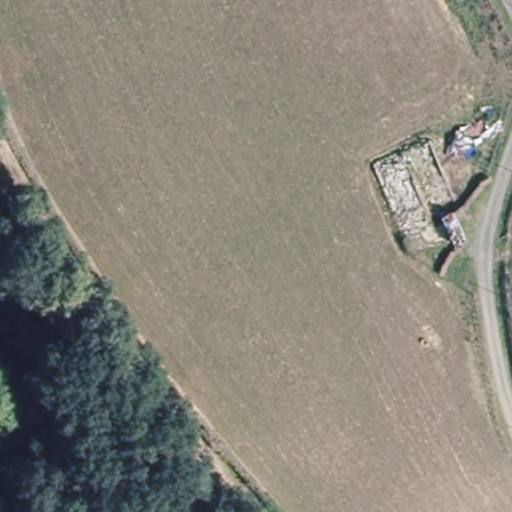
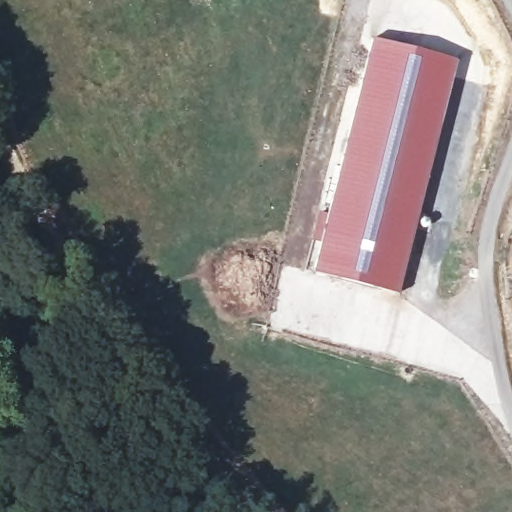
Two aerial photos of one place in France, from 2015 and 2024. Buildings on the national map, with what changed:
new [(313,273),(372,39),(457,61),(397,295),(313,273)]
demolished [(404,235),(398,225),(372,164),(434,140),(460,204),(459,215),(404,235)]

